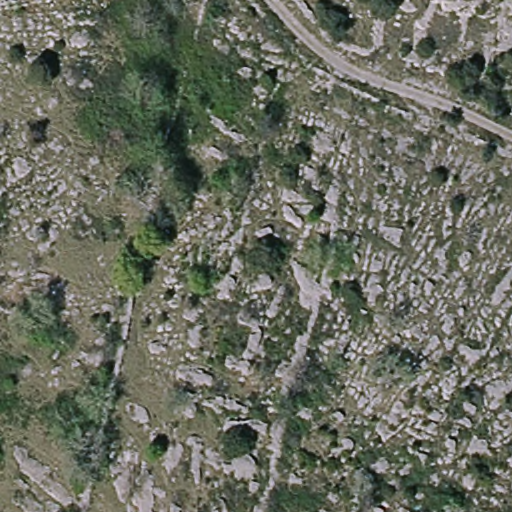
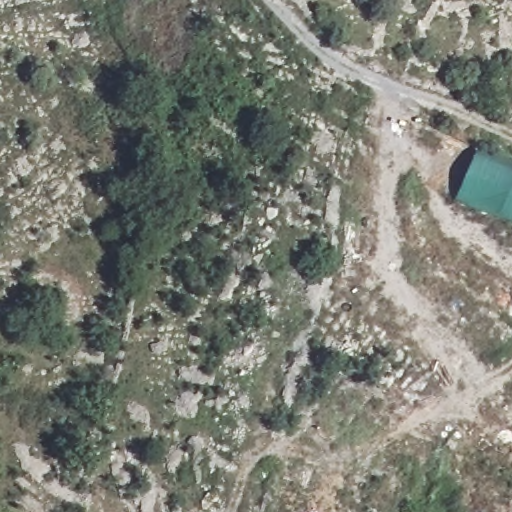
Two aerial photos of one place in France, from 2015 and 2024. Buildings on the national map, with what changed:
new [(512,164),(512,221),(457,195),(478,149),(512,164)]

